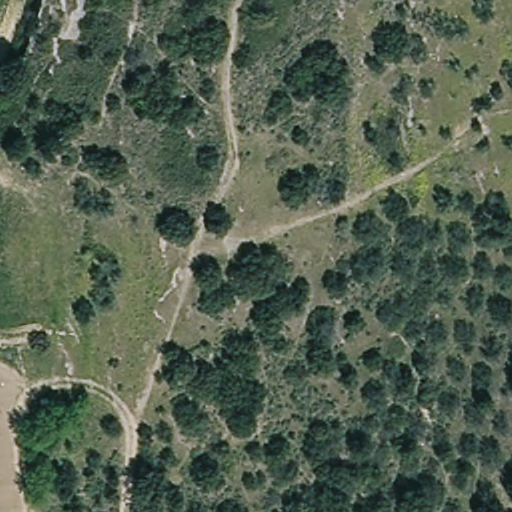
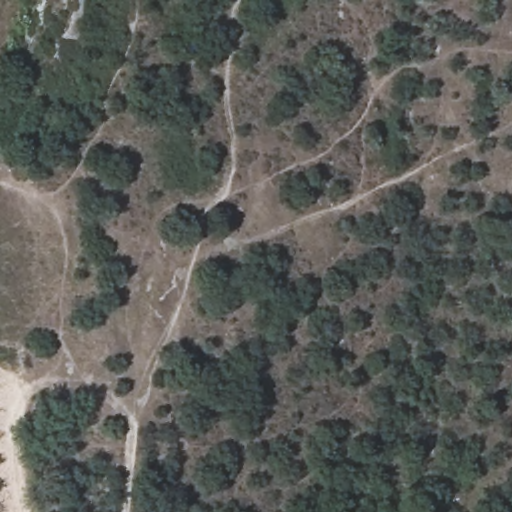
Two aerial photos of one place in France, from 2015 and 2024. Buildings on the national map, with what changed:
[]

